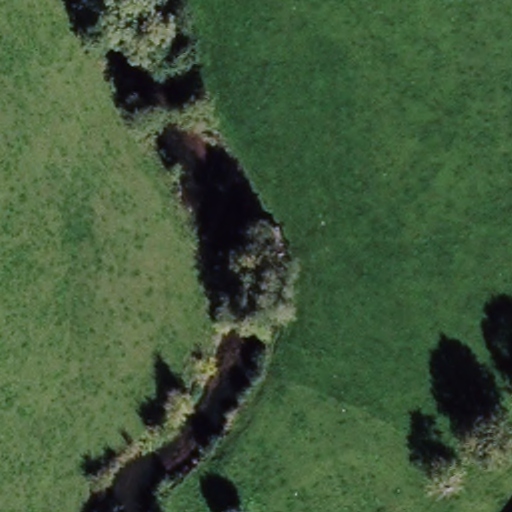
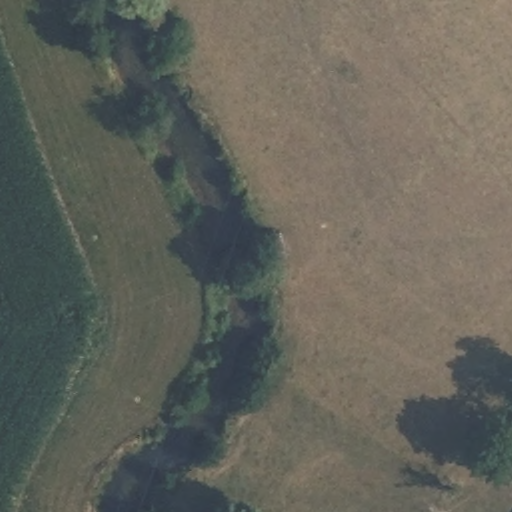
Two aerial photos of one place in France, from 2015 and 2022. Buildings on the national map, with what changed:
unchanged [(272,257),(263,232),(278,227),(288,252),(272,257)]

